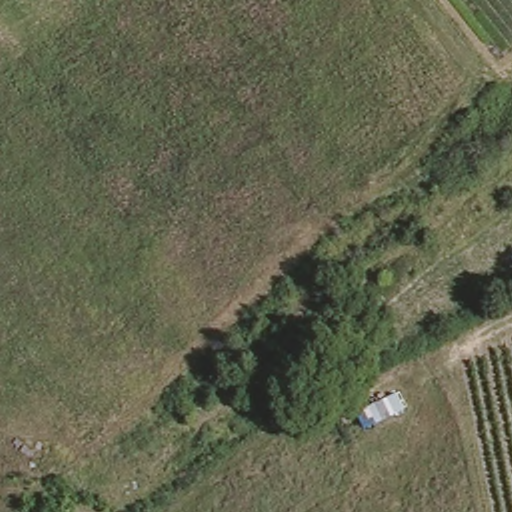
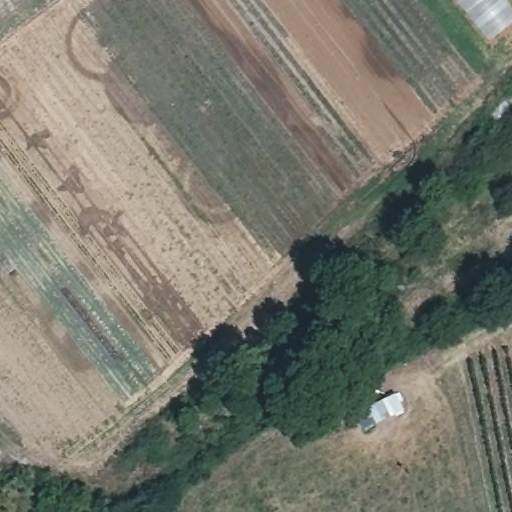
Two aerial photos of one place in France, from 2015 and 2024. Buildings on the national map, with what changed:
new [(490,40),(457,0),(505,0),(512,8),(512,22),(490,40)]

